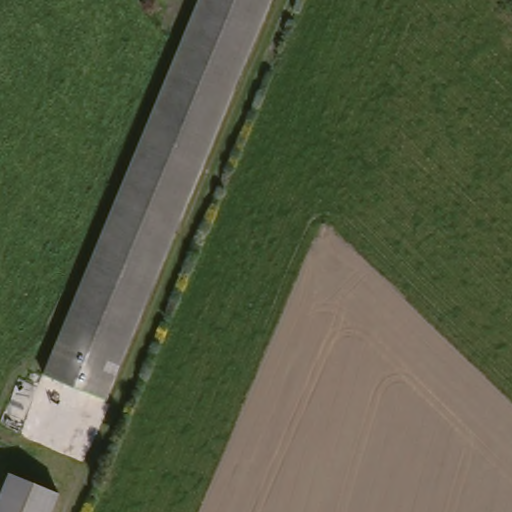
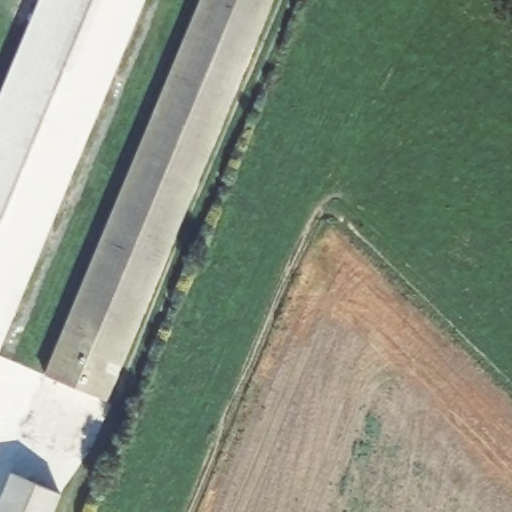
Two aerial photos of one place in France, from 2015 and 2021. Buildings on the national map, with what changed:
new [(37,0),(143,0),(0,344),(0,88),(37,0)]
unchanged [(49,371),(205,0),(272,0),(107,394),(49,371)]
unchanged [(60,512),(3,512),(19,473),(68,493),(60,512)]

